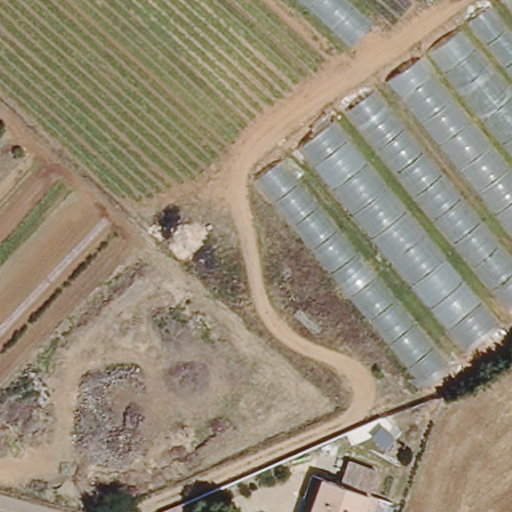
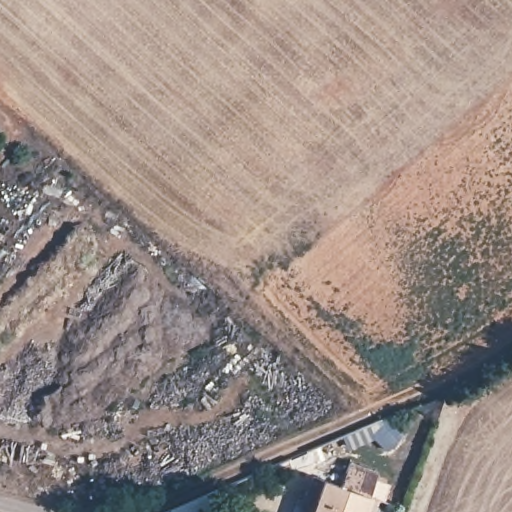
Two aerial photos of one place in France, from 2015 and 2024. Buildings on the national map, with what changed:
demolished [(485,0),(512,0),(512,323),(432,383),(264,174),(485,0)]
demolished [(351,49),(296,0),(366,0),(383,15),(351,49)]
unchanged [(321,474),(378,494),(371,512),(307,512),(321,474)]
new [(208,512),(170,512),(171,508),(202,497),(212,501),(208,512)]

